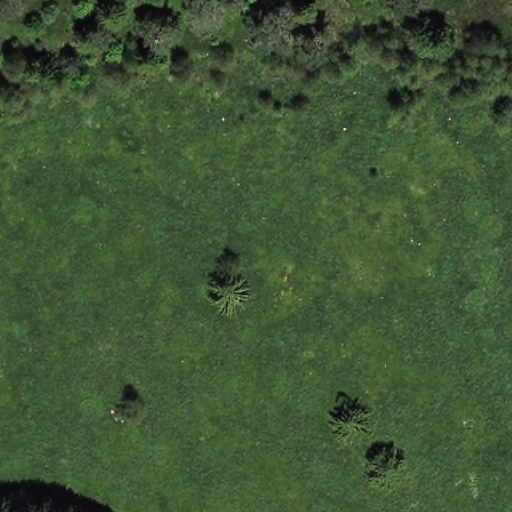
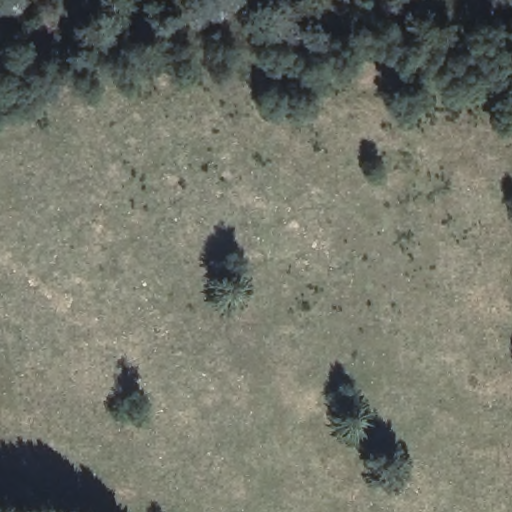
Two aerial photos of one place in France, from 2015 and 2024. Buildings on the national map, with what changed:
[]

